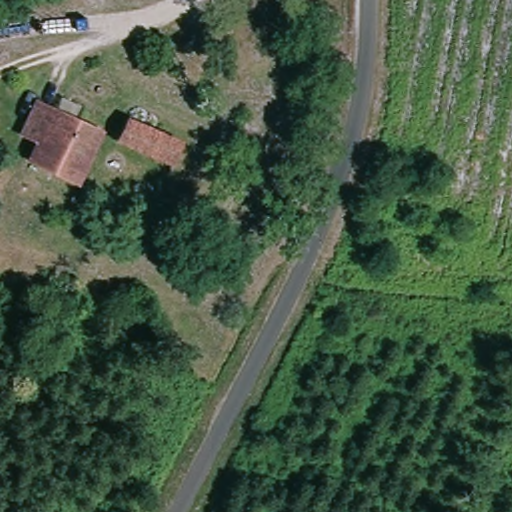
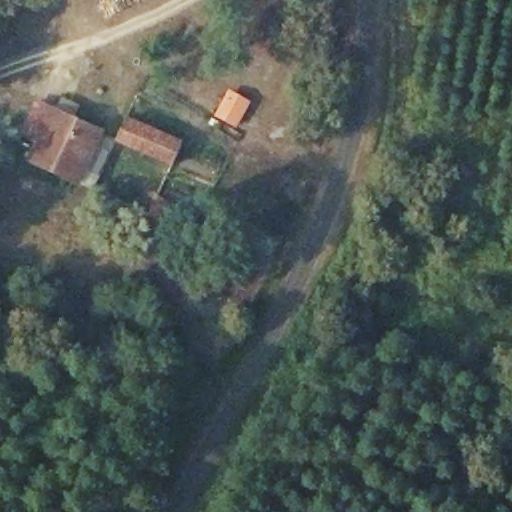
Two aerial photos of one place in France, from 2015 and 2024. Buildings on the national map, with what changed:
unchanged [(72,178),(21,157),(48,105),(96,128),(72,178)]
unchanged [(126,111),(180,136),(168,163),(113,138),(126,111)]
unchanged [(153,198),(146,215),(131,207),(138,191),(153,198)]

